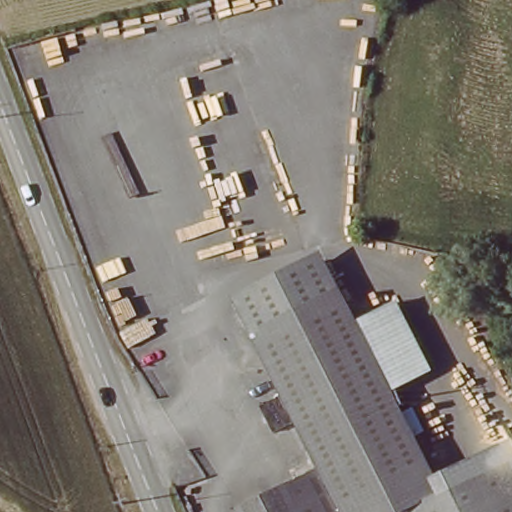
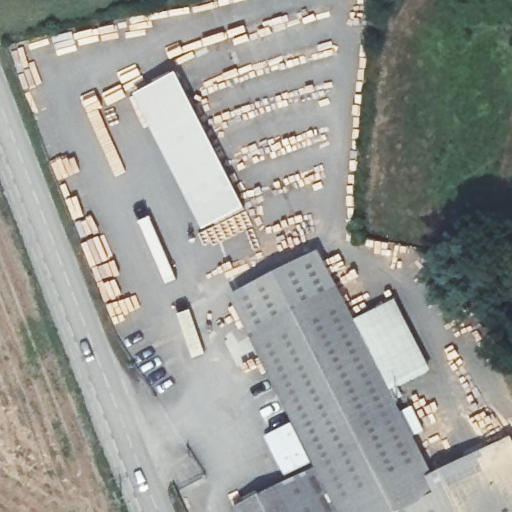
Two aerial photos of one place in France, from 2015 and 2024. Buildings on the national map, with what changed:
new [(177,75),(246,211),(204,233),(135,96),(177,75)]
unchanged [(225,294),(313,250),(328,280),(240,324),(225,294)]
unchanged [(328,280),(349,323),(387,304),(420,371),(382,390),(430,486),(434,494),(411,505),(397,512),(289,512),(276,486),(312,469),(289,422),(267,432),(254,406),(276,396),(240,324),(328,280)]
unchanged [(494,455),(512,446),(512,493),(494,455)]
unchanged [(494,455),(512,493),(512,512),(452,512),(437,482),(494,455)]
unchanged [(437,482),(452,512),(414,512),(411,505),(434,494),(430,486),(437,482)]
unchanged [(289,512),(234,512),(232,507),(276,486),(289,512)]

